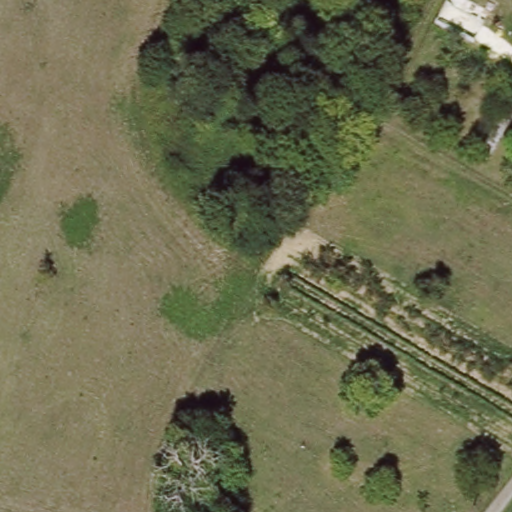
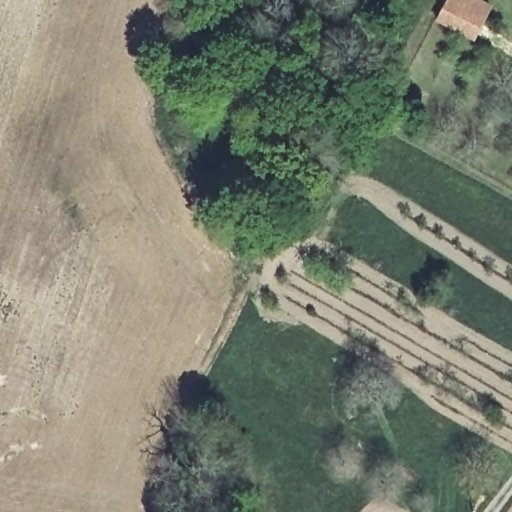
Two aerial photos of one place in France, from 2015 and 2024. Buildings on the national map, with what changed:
new [(444,0),(480,0),(491,5),(472,42),(433,21),(444,0)]

